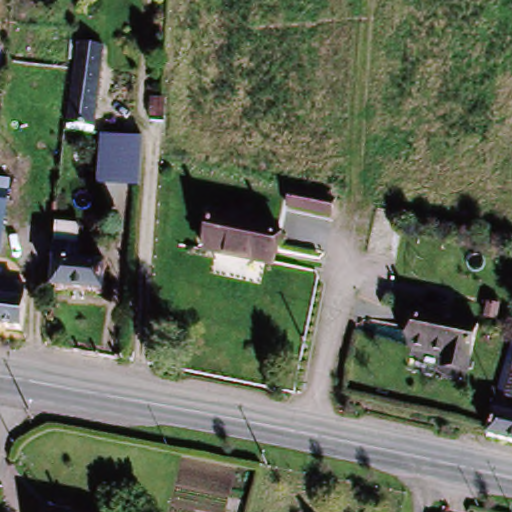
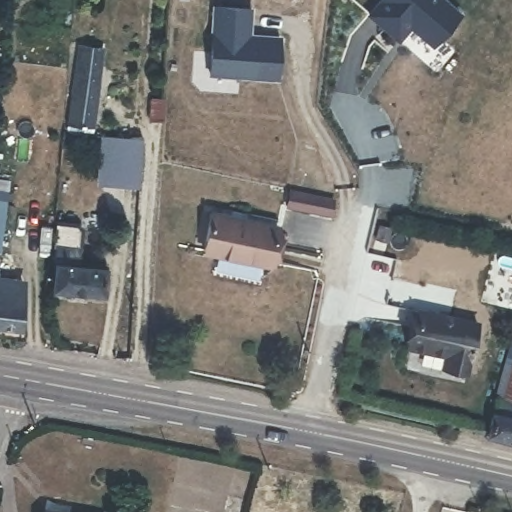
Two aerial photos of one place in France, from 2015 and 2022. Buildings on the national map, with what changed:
new [(411,26),(398,40),(369,13),(382,0),(443,0),(459,14),(432,44),(411,26)]
new [(250,34),(281,37),(285,50),(285,64),(279,77),(210,72),(215,5),(250,8),(250,34)]
unchanged [(96,125),(73,124),(84,43),(106,45),(96,125)]
unchanged [(97,183),(100,133),(142,135),(139,185),(97,183)]
unchanged [(0,251),(0,176),(10,177),(1,251),(0,251)]
unchanged [(332,215),(285,206),(289,187),(335,196),(332,215)]
unchanged [(270,260),(204,246),(212,209),(277,222),(270,260)]
unchanged [(80,228),(80,247),(56,246),(56,227),(80,228)]
unchanged [(77,271),(106,274),(104,299),(57,294),(60,274),(53,272),(55,256),(75,258),(78,258),(77,271)]
unchanged [(27,306),(32,307),(27,333),(0,331),(0,288),(29,292),(27,306)]
unchanged [(470,368),(448,363),(450,353),(412,343),(422,308),(481,324),(470,368)]
unchanged [(490,405),(512,336),(512,411),(490,405)]
unchanged [(490,405),(512,411),(512,450),(477,441),(490,405)]
unchanged [(69,512),(50,512),(52,506),(69,512)]

